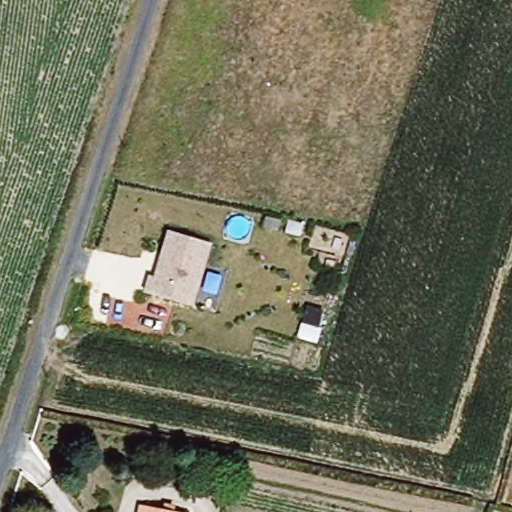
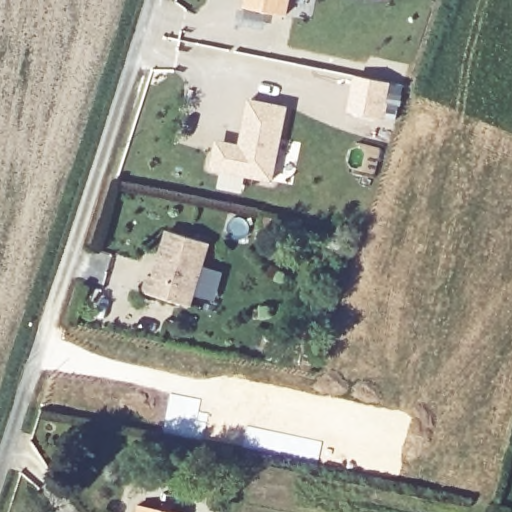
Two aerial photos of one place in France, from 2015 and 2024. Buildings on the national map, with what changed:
new [(288,15),(242,8),(244,0),(291,0),(288,15)]
new [(391,82),(384,118),(348,112),(355,77),(391,82)]
new [(288,106),(274,181),(210,169),(215,138),(239,142),(247,98),(288,106)]
unchanged [(139,289),(144,271),(154,274),(167,230),(212,242),(193,306),(139,289)]
unchanged [(188,512),(153,512),(154,505),(188,512)]

